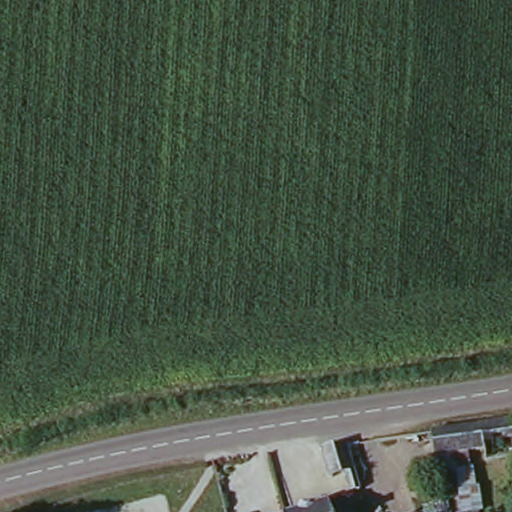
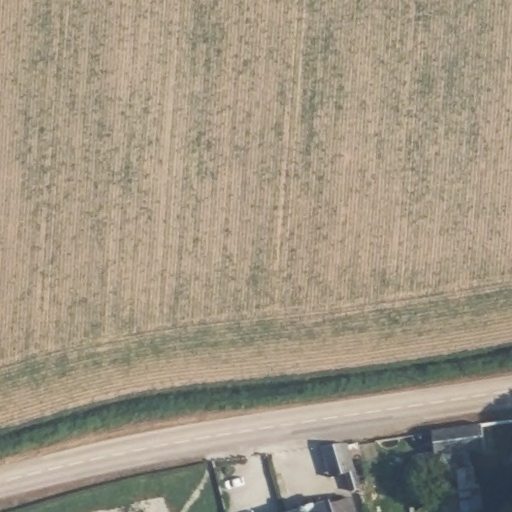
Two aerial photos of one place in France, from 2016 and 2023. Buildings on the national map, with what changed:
unchanged [(512,425),(512,462),(486,467),(481,454),(433,462),(428,438),(458,434),(512,425)]
unchanged [(360,469),(351,473),(339,478),(332,464),(327,449),(351,446),(360,469)]
unchanged [(331,508),(354,503),(357,512),(296,512),(328,502),(331,508)]

